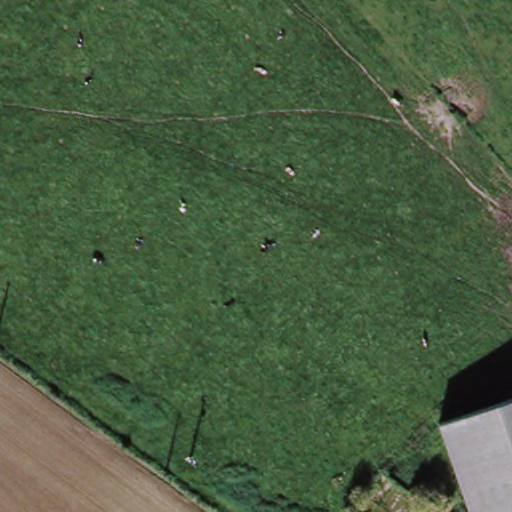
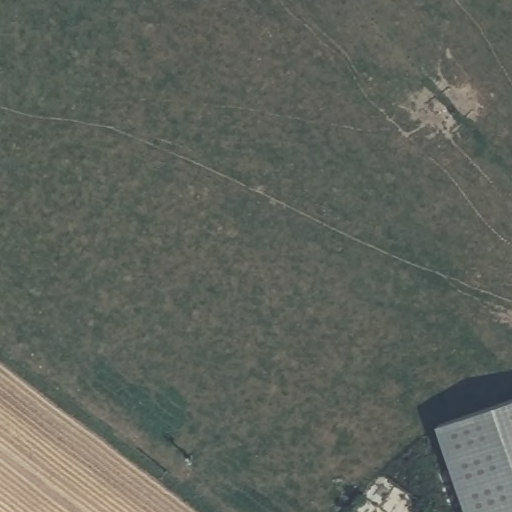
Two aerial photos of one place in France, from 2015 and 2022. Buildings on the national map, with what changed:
unchanged [(512,404),(512,512),(474,512),(445,426),(512,404)]

